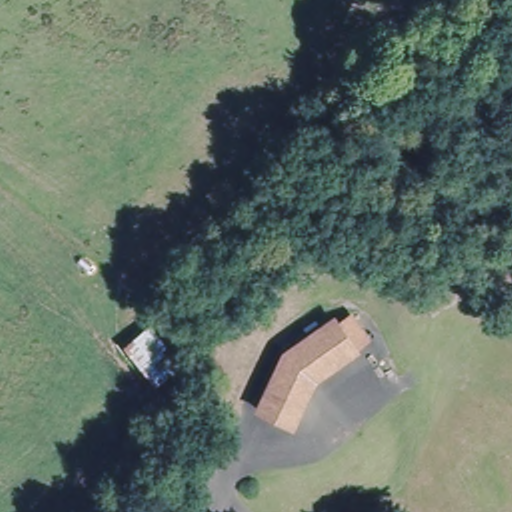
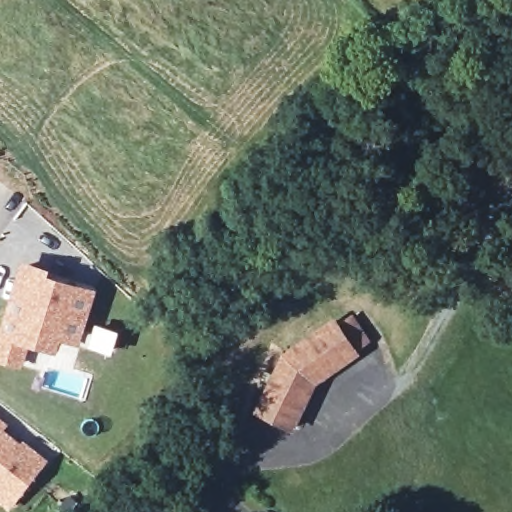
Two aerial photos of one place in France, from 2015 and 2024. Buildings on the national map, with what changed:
new [(51,267),(50,275),(100,290),(84,344),(64,337),(60,348),(34,341),(25,368),(0,361),(0,343),(24,261),(51,267)]
unchanged [(325,320),(331,328),(344,319),(357,340),(345,348),(346,351),(303,382),(283,423),(250,407),(275,357),(325,320)]
unchanged [(47,458),(10,508),(0,500),(0,419),(47,458)]

